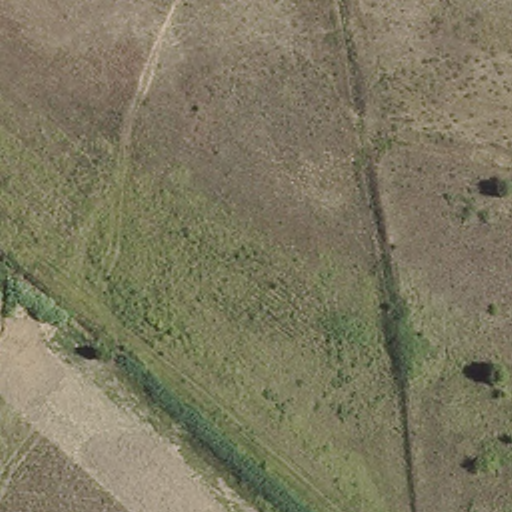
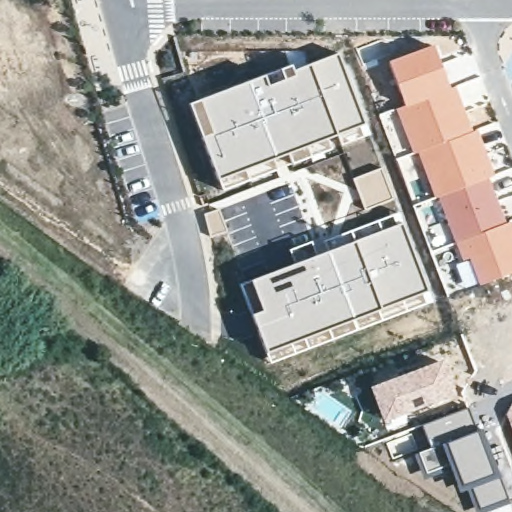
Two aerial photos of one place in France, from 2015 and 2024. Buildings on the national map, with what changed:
new [(435,45),(440,62),(449,87),(454,85),(475,129),(415,152),(412,154),(412,152),(395,109),(403,105),(387,61),(435,45)]
new [(338,147),(323,155),(278,170),(220,191),(187,104),(265,73),(291,64),(301,61),(305,64),(339,52),(365,123),(370,135),(338,147)]
new [(475,129),(477,128),(496,177),(492,180),(490,178),(435,199),(433,196),(415,152),(475,129)]
new [(381,168),(392,199),(363,210),(352,179),(381,168)]
new [(505,223),(512,221),(512,222),(512,272),(479,285),(469,258),(462,261),(438,198),(488,179),(505,223)]
new [(322,240),(398,212),(433,301),(268,363),(238,284),(292,261),(287,249),(310,240),(315,252),(325,249),(322,240)]
new [(442,360),(456,398),(382,422),(368,387),(442,360)]
new [(512,402),(512,434),(505,414),(510,405),(512,402)]
new [(467,408),(476,430),(430,447),(422,426),(467,408)]
new [(430,447),(476,430),(500,480),(509,503),(487,511),(485,507),(478,510),(468,488),(459,492),(447,465),(425,474),(417,452),(430,447)]

